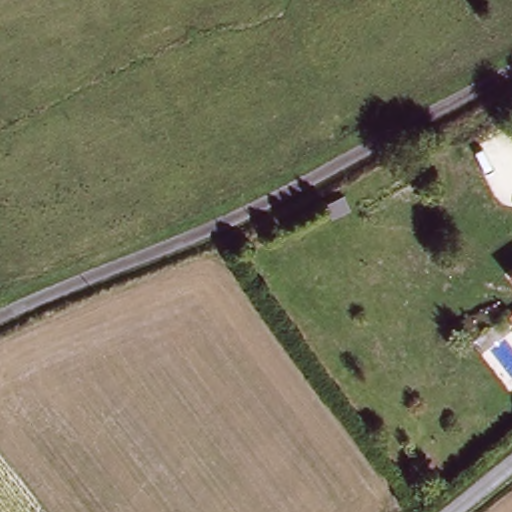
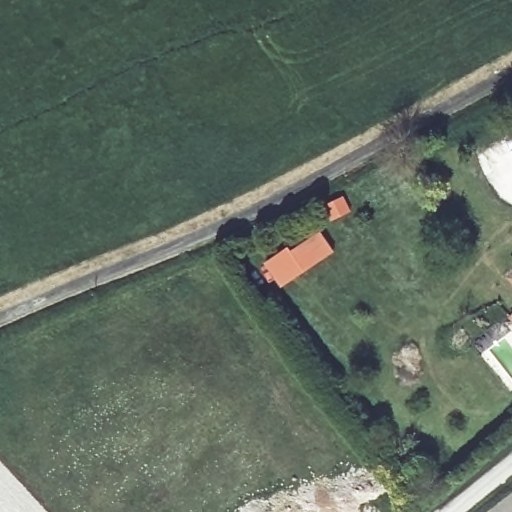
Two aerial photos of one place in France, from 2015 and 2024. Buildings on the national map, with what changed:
new [(352,210),(332,219),(327,204),(346,194),(352,210)]
new [(290,245),(292,249),(322,229),(335,251),(282,286),(267,262),(290,245)]

